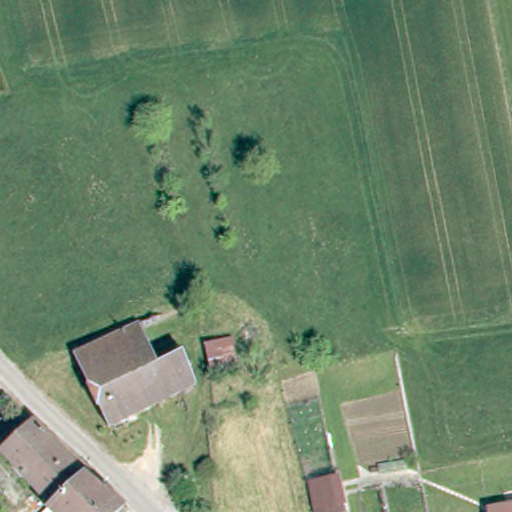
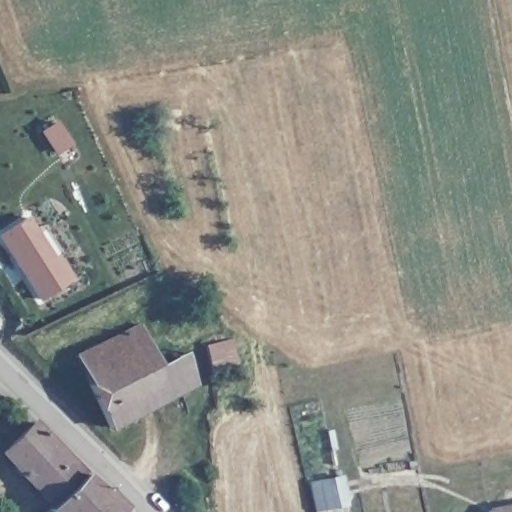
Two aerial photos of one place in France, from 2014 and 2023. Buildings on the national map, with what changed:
new [(57,122),(71,144),(58,152),(44,131),(57,122)]
new [(76,278),(40,301),(0,240),(0,234),(31,215),(56,257),(60,255),(76,278)]
unchanged [(112,430),(76,356),(137,325),(159,368),(180,357),(185,366),(196,389),(112,430)]
unchanged [(221,330),(237,362),(215,372),(199,340),(221,330)]
unchanged [(45,493),(42,490),(3,448),(33,420),(89,475),(104,489),(107,487),(127,506),(124,510),(126,512),(35,512),(31,507),(45,493)]
unchanged [(328,477),(335,505),(320,507),(312,480),(328,477)]
unchanged [(512,507),(512,512),(487,512),(487,511),(512,507)]

